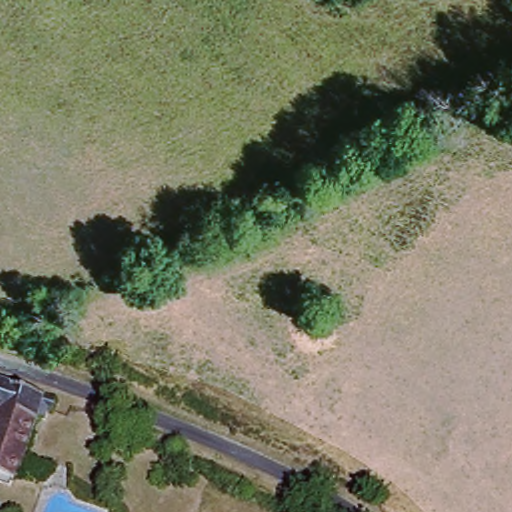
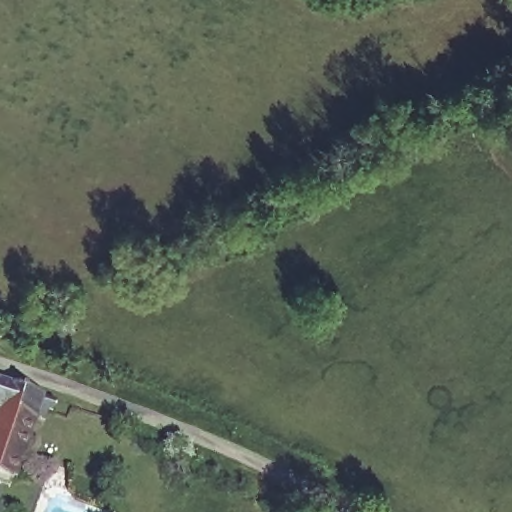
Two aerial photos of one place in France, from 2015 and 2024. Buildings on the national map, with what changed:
unchanged [(57,408),(53,420),(43,415),(19,476),(15,481),(0,475),(0,384),(57,408)]

